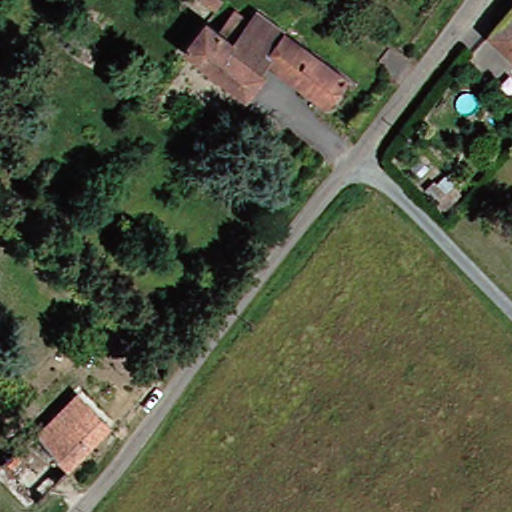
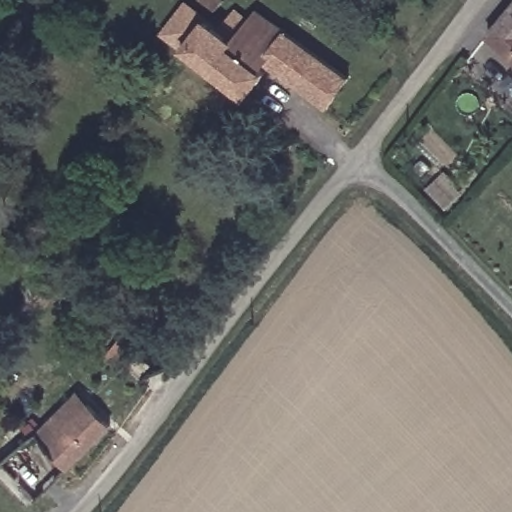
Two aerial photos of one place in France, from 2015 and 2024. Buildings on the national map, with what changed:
unchanged [(220,0),(224,2),(217,14),(201,5),(203,0),(220,0)]
unchanged [(480,40),(512,4),(512,70),(480,40)]
unchanged [(202,24),(216,35),(232,13),(245,22),(252,13),(343,81),(323,109),(262,65),(256,73),(261,77),(243,100),(180,53),(202,24)]
unchanged [(75,405),(84,396),(107,421),(65,463),(29,427),(66,395),(75,405)]

